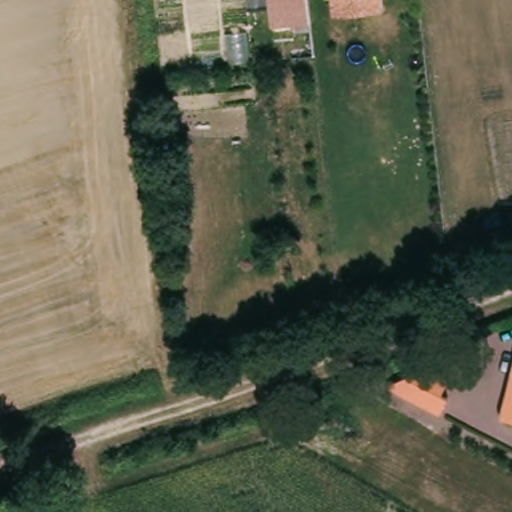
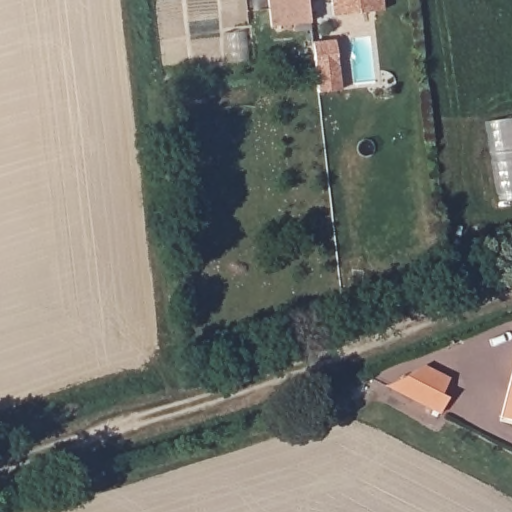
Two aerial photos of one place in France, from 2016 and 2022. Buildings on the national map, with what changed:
unchanged [(285,26),(282,0),(306,0),(308,25),(285,26)]
unchanged [(335,13),(333,0),(384,0),(385,8),(335,13)]
new [(318,93),(315,67),(314,55),(313,43),(335,40),(338,65),(340,90),(318,93)]
unchanged [(451,375),(442,391),(448,395),(440,410),(386,380),(429,361),(451,375)]
unchanged [(503,417),(512,380),(512,420),(503,417)]

